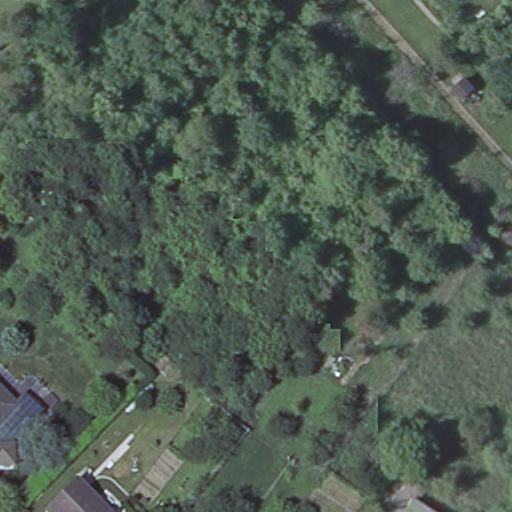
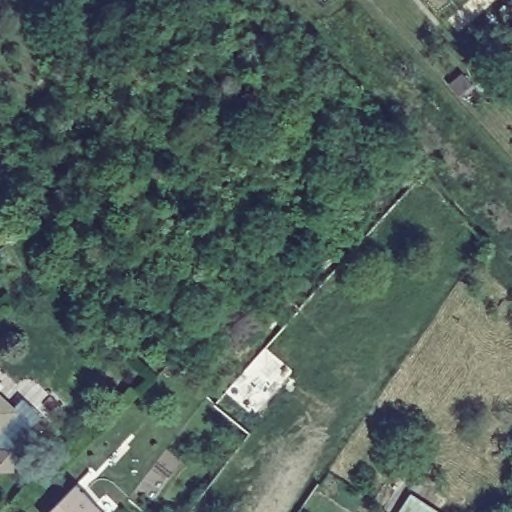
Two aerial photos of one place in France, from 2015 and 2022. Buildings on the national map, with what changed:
unchanged [(25,405),(0,430),(0,380),(25,405)]
unchanged [(114,512),(48,512),(81,476),(114,512)]
unchanged [(442,512),(399,512),(412,492),(442,512)]

